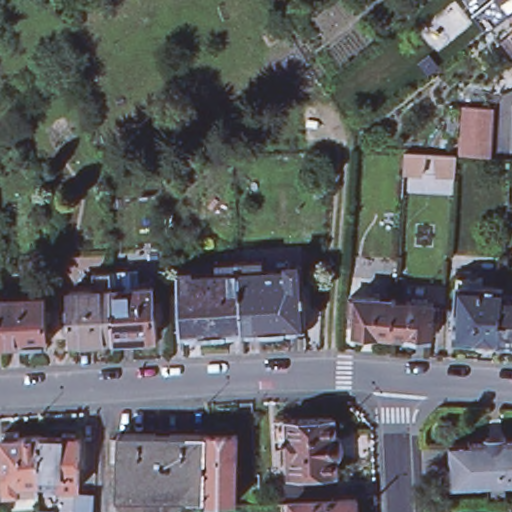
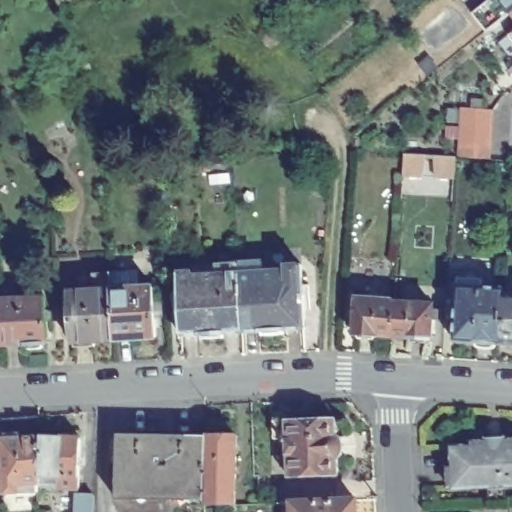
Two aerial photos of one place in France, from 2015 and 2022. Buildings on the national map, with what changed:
unchanged [(510,14),(506,17),(496,4),(500,1),(500,0),(512,0),(512,16),(510,14)]
unchanged [(499,45),(509,37),(512,35),(512,62),(499,45)]
unchanged [(462,104),(494,106),(491,155),(460,152),(462,104)]
unchanged [(452,154),(457,155),(456,178),(455,178),(455,186),(435,185),(435,159),(427,159),(425,186),(404,185),(405,151),(452,154)]
unchanged [(267,260),(267,271),(292,269),(292,264),(306,263),(310,326),(289,328),(289,331),(269,333),(268,329),(249,330),(245,262),(267,260)]
unchanged [(228,331),(228,335),(207,336),(207,333),(186,334),(182,271),(197,270),(197,275),(222,273),(221,263),(245,262),(249,330),(228,331)]
unchanged [(112,292),(115,338),(96,339),(96,345),(75,346),(75,341),(72,341),(69,290),(94,289),(92,272),(102,271),(102,266),(111,266),(112,292)]
unchanged [(503,346),(502,346),(501,350),(499,352),(496,354),(493,355),(490,355),(487,355),(484,353),(482,351),(480,348),(479,345),(459,344),(462,280),(487,282),(487,289),(507,291),(507,296),(503,346)]
unchanged [(155,290),(157,336),(115,338),(112,292),(155,290)]
unchanged [(47,342),(45,342),(42,347),(30,347),(25,343),(2,344),(0,345),(0,298),(45,295),(47,342)]
unchanged [(397,334),(380,333),(380,336),(377,337),(365,337),(362,334),(362,332),(359,331),(359,313),(353,312),(355,295),(399,298),(397,334)]
unchanged [(512,297),(512,347),(503,346),(507,296),(512,297)]
unchanged [(400,298),(400,300),(438,303),(435,337),(433,336),(432,340),(417,340),(414,337),(414,335),(397,334),(399,298),(400,298)]
unchanged [(345,461),(343,464),(344,474),(339,478),(294,479),(294,457),(292,457),(292,447),(280,447),(280,423),(292,423),(337,420),(342,424),(342,435),(344,437),(346,440),(347,443),(349,446),(349,449),(349,452),(348,456),(347,459),(345,461)]
unchanged [(32,494),(0,496),(0,490),(0,441),(0,435),(15,434),(15,440),(37,439),(36,479),(37,479),(37,486),(33,486),(32,494)]
unchanged [(37,439),(59,439),(60,435),(72,435),(72,439),(77,439),(75,480),(37,479),(36,479),(37,439)]
unchanged [(123,494),(124,464),(111,464),(112,444),(124,445),(124,436),(212,438),(211,496),(123,494)]
unchanged [(242,438),(241,507),(211,508),(211,496),(212,438),(242,438)]
unchanged [(487,447),(486,441),(506,440),(507,446),(512,446),(512,488),(454,490),(452,449),(487,447)]
unchanged [(90,488),(89,512),(72,512),(73,487),(90,488)]
unchanged [(33,512),(35,488),(37,488),(47,488),(46,500),(62,500),(62,512),(33,512)]
unchanged [(311,504),(312,492),(341,492),(342,503),(361,502),(361,512),(297,512),(297,504),(311,504)]

